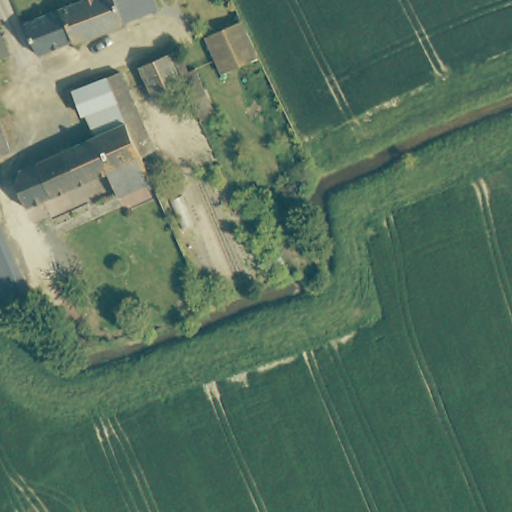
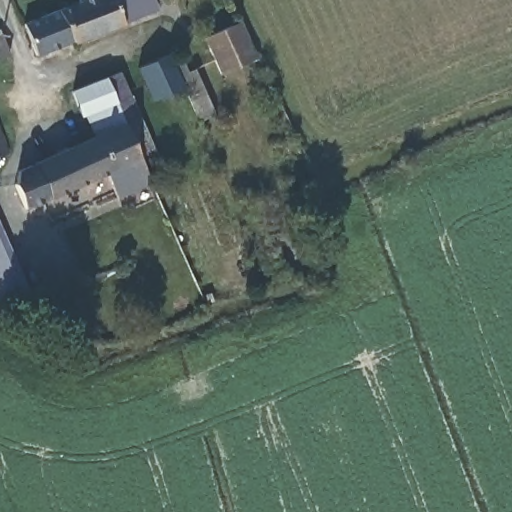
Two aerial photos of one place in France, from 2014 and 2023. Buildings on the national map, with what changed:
unchanged [(158,0),(161,9),(77,42),(76,41),(72,30),(64,9),(83,1),(82,0),(158,0)]
unchanged [(41,55),(28,23),(64,9),(72,30),(76,41),(41,55)]
unchanged [(262,59),(224,74),(207,39),(245,21),(262,59)]
unchanged [(16,57),(0,63),(0,33),(5,31),(16,57)]
unchanged [(173,57),(192,105),(162,117),(143,69),(173,57)]
unchanged [(160,149),(146,155),(131,122),(129,115),(122,100),(89,112),(79,89),(111,76),(126,70),(160,149)]
unchanged [(198,74),(218,118),(204,125),(184,80),(198,74)]
unchanged [(126,181),(120,167),(29,208),(19,187),(25,169),(131,122),(146,155),(152,169),(126,181)]
unchanged [(7,140),(13,154),(0,159),(0,125),(1,125),(7,140)]
unchanged [(0,210),(35,296),(4,308),(0,300),(0,210)]

